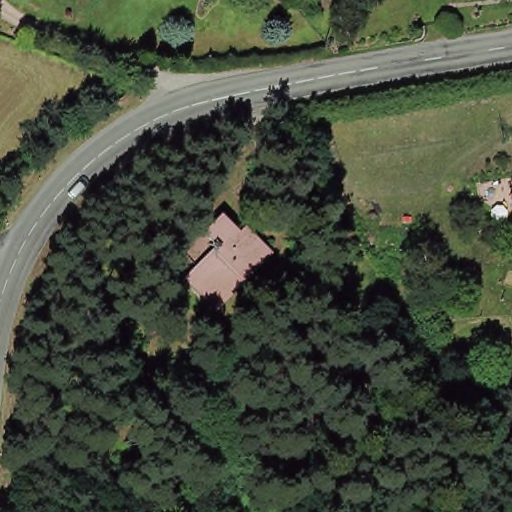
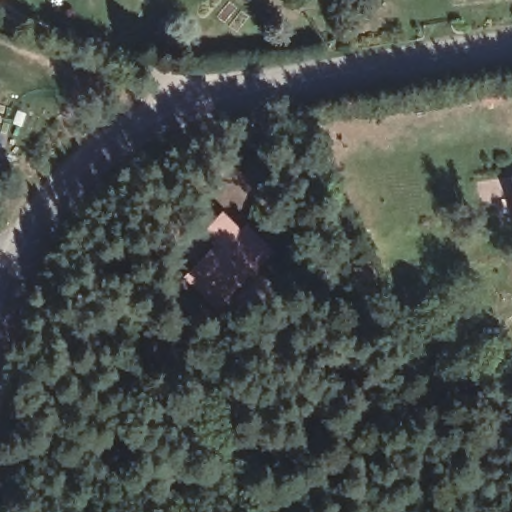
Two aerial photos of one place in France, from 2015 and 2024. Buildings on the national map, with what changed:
unchanged [(459,0),(464,0),(459,1),(459,0)]
unchanged [(250,229),(274,254),(219,305),(192,280),(206,267),(189,248),(224,215),(228,220),(243,237),(250,229)]

